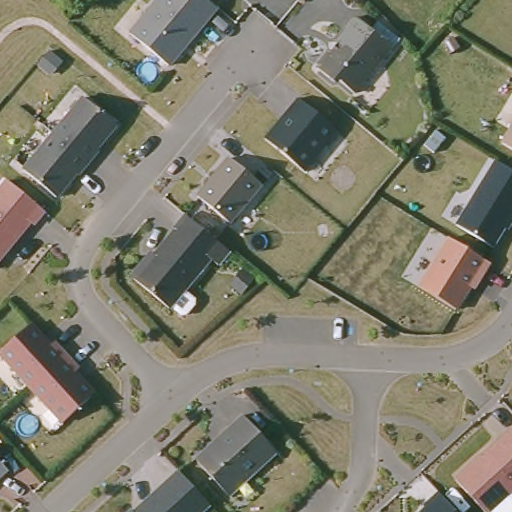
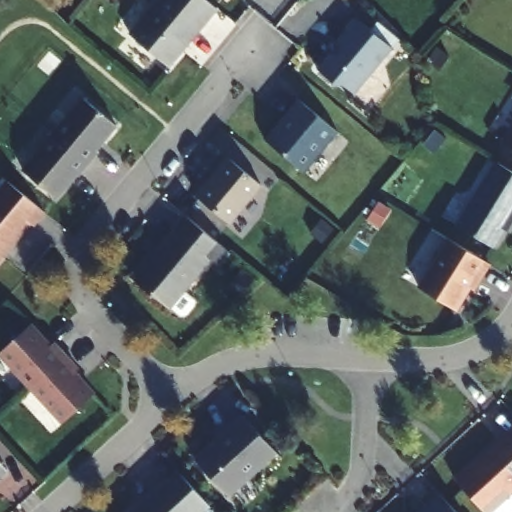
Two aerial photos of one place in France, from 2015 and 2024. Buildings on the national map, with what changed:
unchanged [(129,34),(158,0),(205,0),(216,9),(187,44),(186,43),(184,43),(180,48),(180,50),(181,51),(168,66),(129,34)]
unchanged [(337,45),(335,44),(356,19),(393,49),(369,77),(366,77),(353,92),(355,94),(354,95),(339,83),(333,84),(316,70),(337,45)]
unchanged [(82,99),(114,127),(95,150),(97,151),(87,162),(53,133),(82,99)]
unchanged [(264,140),(266,141),(298,102),(296,101),(297,100),(337,134),(337,135),(335,133),(302,172),(304,174),(304,175),(263,141),(264,140)]
unchanged [(502,143),(512,126),(512,149),(502,143)]
unchanged [(87,162),(78,174),(76,172),(57,195),(24,167),(53,133),(87,162)]
unchanged [(228,160),(260,186),(228,225),(195,198),(228,160)]
unchanged [(512,170),(512,216),(493,247),(456,225),(496,160),(512,170)]
unchanged [(9,177),(14,181),(45,208),(34,222),(31,220),(0,257),(0,188),(9,177)]
unchanged [(201,230),(228,252),(216,266),(209,260),(167,310),(132,281),(131,275),(142,262),(148,262),(173,231),(172,230),(184,216),(201,230)]
unchanged [(449,239),(464,248),(489,263),(479,280),(476,277),(455,311),(418,288),(449,239)]
unchanged [(0,356),(0,352),(29,326),(48,347),(52,344),(64,357),(30,389),(0,356)]
unchanged [(64,357),(76,371),(73,375),(92,396),(62,425),(30,389),(64,357)]
unchanged [(209,445),(212,447),(218,442),(217,441),(240,420),(238,417),(239,417),(279,460),(273,455),(260,467),(258,465),(225,495),(227,497),(226,498),(191,461),(209,445)]
unchanged [(474,465),(512,430),(512,491),(511,492),(512,494),(512,512),(483,512),(455,481),(473,465),(474,465)]
unchanged [(7,465),(0,471),(0,457),(7,465)]
unchanged [(177,473),(201,499),(207,505),(199,512),(134,512),(177,473)]
unchanged [(425,510),(423,507),(438,493),(453,509),(455,512),(422,512),(425,510)]
unchanged [(131,511),(131,512),(130,512),(131,511)]

